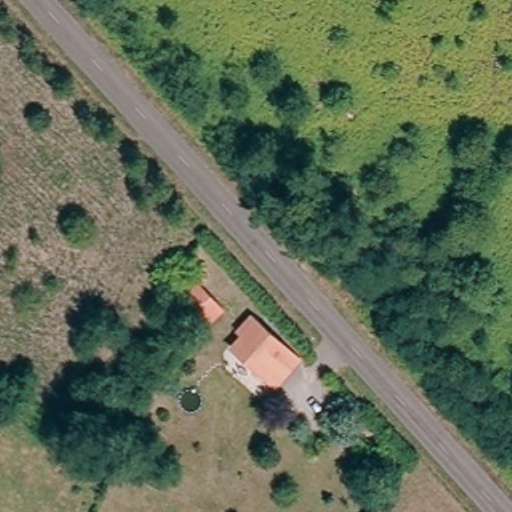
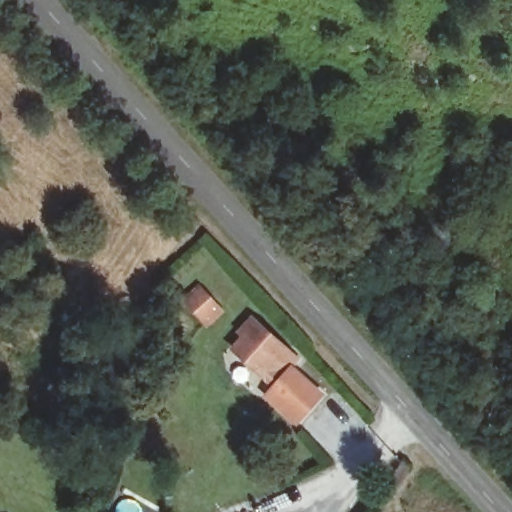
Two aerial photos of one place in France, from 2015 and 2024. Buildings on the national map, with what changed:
unchanged [(193,295),(209,313),(200,324),(183,305),(193,295)]
unchanged [(273,388),(238,356),(250,341),(247,337),(256,326),(296,362),(273,388)]
new [(298,424),(265,396),(273,388),(294,365),(325,393),(298,424)]

